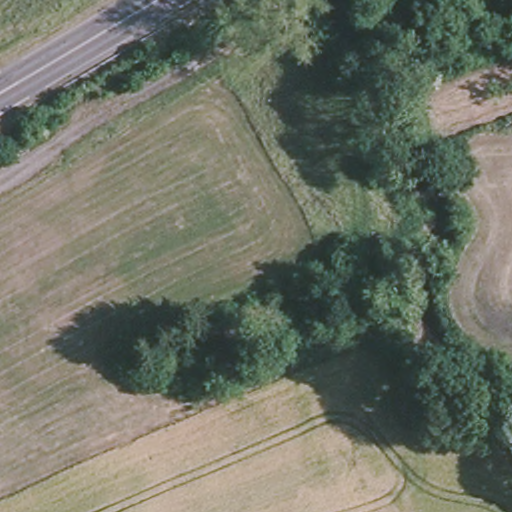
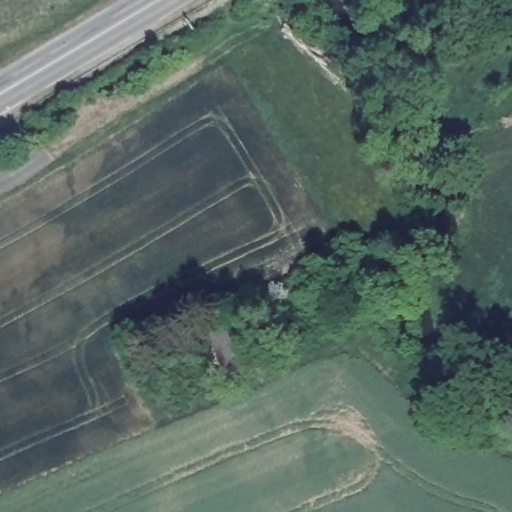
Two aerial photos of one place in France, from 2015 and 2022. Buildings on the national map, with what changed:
unchanged [(246,317),(261,362),(222,379),(202,332),(246,317)]

